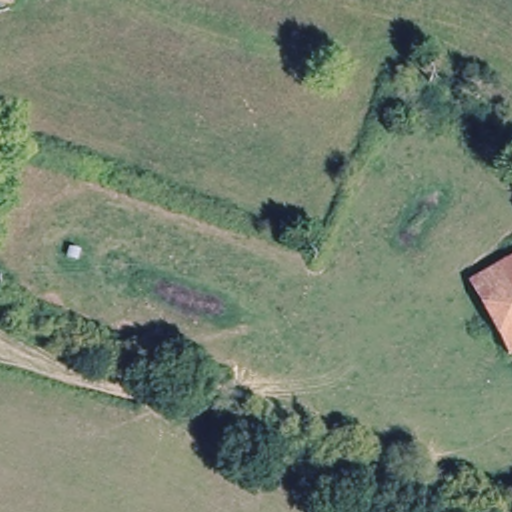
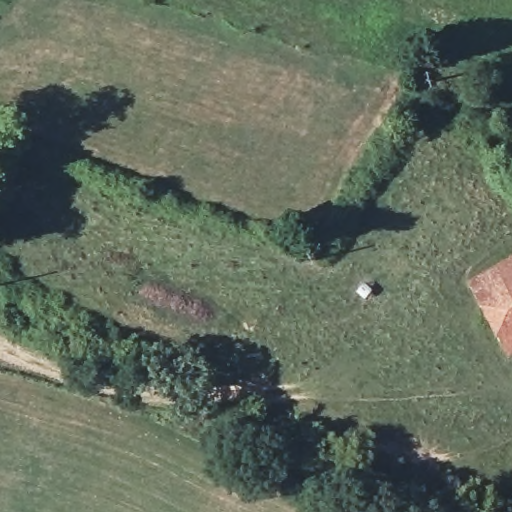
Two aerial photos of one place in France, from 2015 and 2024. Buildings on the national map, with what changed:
unchanged [(470,276),(512,253),(512,350),(509,351),(470,276)]

